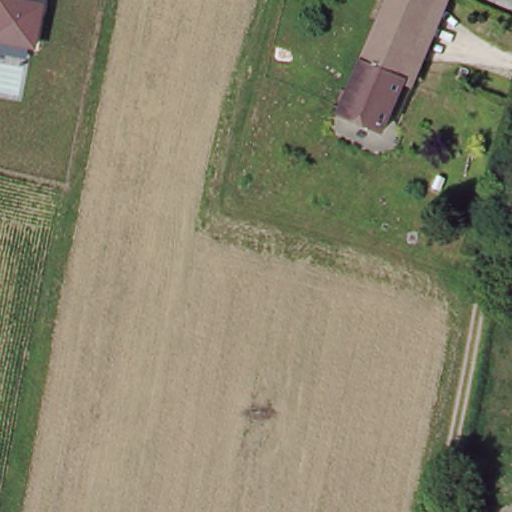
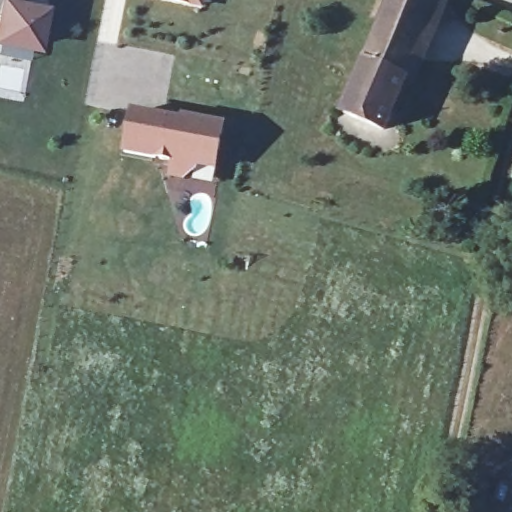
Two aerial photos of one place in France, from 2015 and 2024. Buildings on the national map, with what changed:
unchanged [(47,6),(39,52),(0,45),(0,0),(17,0),(17,1),(47,6)]
new [(162,0),(205,0),(202,10),(162,0)]
unchanged [(342,117),(391,0),(439,0),(386,134),(342,117)]
new [(215,172),(195,169),(194,172),(181,181),(166,179),(167,162),(122,156),(129,109),(180,119),(180,115),(224,125),(215,172)]

